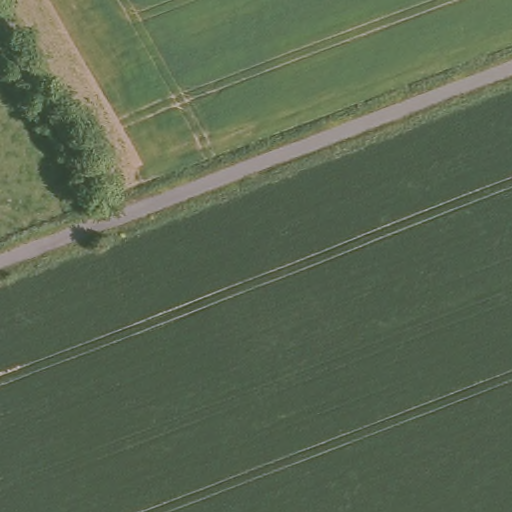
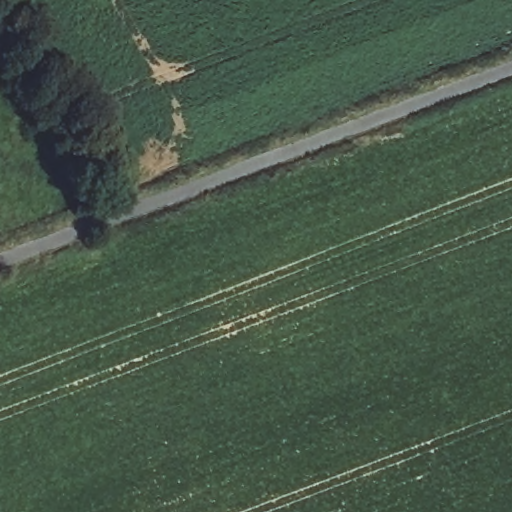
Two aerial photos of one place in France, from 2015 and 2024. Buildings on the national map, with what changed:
[]

